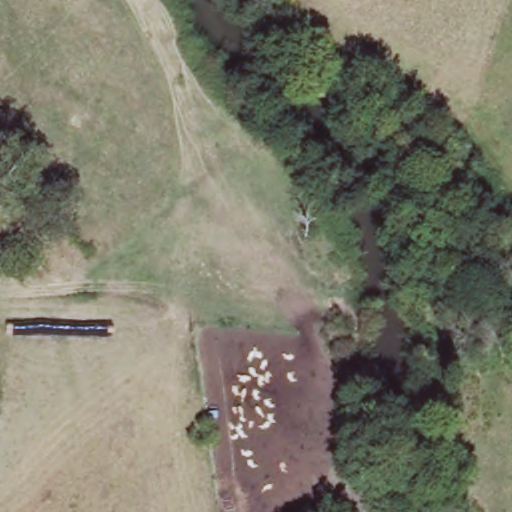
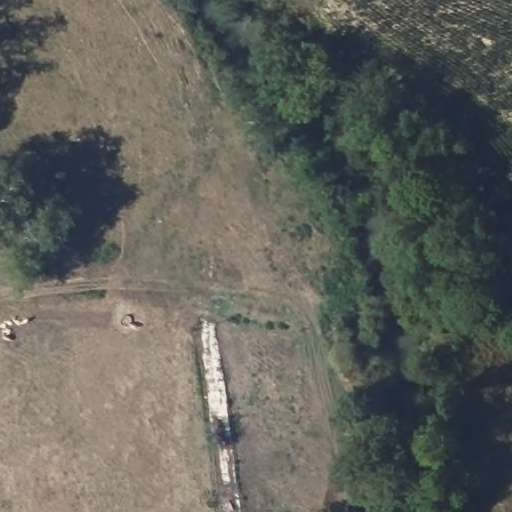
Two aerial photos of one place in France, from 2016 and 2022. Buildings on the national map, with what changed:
[]

